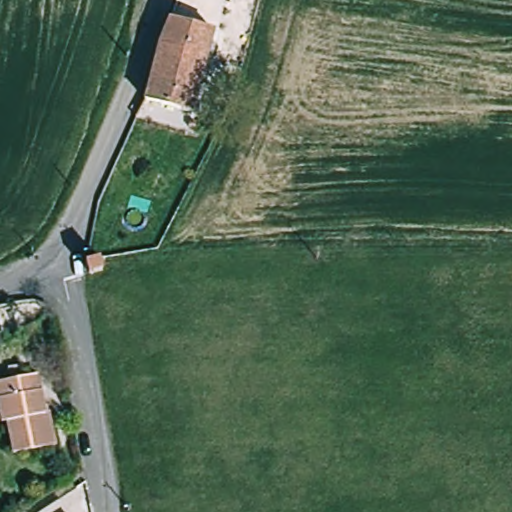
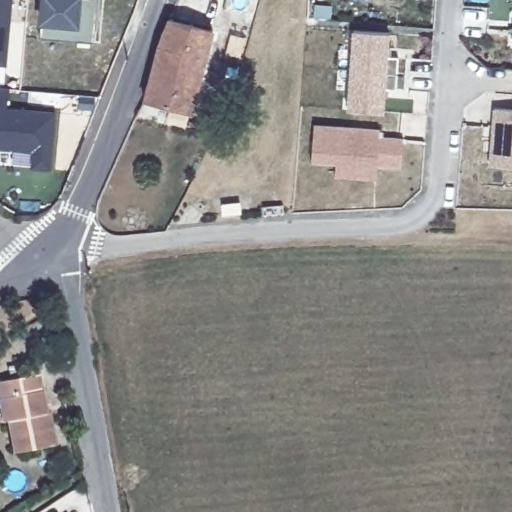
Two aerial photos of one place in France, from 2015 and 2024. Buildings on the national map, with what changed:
new [(4,67),(0,67),(0,0),(11,0),(4,67)]
new [(60,42),(38,40),(42,0),(99,0),(96,29),(95,45),(60,42)]
unchanged [(191,112),(144,100),(158,46),(169,19),(213,30),(191,112)]
new [(353,30),(388,32),(381,112),(347,110),(353,30)]
new [(5,109),(53,114),(48,171),(30,169),(31,152),(0,150),(0,89),(8,90),(5,109)]
new [(493,108),(512,110),(512,168),(488,166),(493,108)]
new [(380,129),(379,134),(404,137),(400,169),(377,165),(376,179),(336,176),(336,164),(311,161),(314,124),(380,129)]
unchanged [(13,453),(6,421),(1,422),(0,414),(0,381),(37,374),(44,412),(48,412),(54,445),(13,453)]

